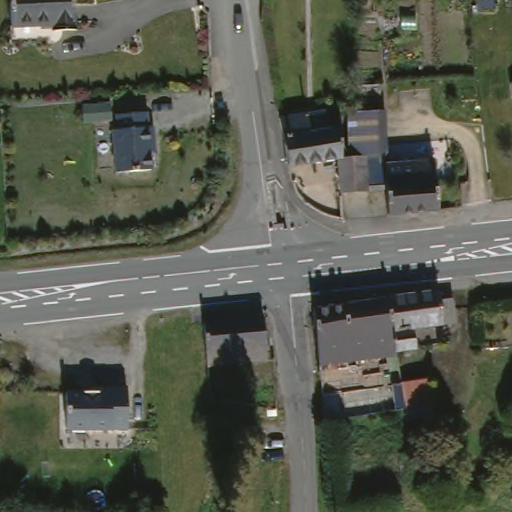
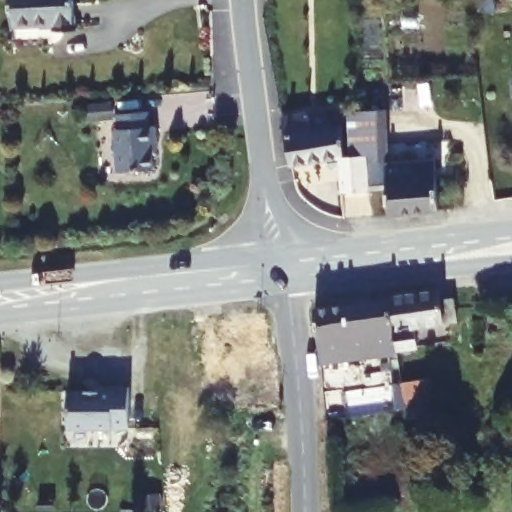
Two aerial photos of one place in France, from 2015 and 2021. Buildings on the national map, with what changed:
unchanged [(75,25),(56,26),(56,19),(12,21),(11,0),(74,0),(75,25)]
unchanged [(494,12),(479,12),(479,0),(495,0),(494,12)]
unchanged [(512,81),(512,99),(509,83),(512,81)]
unchanged [(491,124),(476,123),(477,95),(493,96),(491,124)]
unchanged [(308,114),(326,110),(327,117),(342,115),(344,158),(351,158),(367,157),(369,190),(342,192),(339,159),(290,167),(284,137),(281,118),(308,114)]
unchanged [(435,159),(439,211),(389,216),(388,189),(369,190),(367,157),(351,158),(349,112),(384,111),(386,157),(387,163),(435,159)]
unchanged [(116,128),(123,127),(124,115),(150,112),(151,126),(157,127),(159,166),(121,171),(116,128)]
unchanged [(445,296),(458,293),(462,318),(419,324),(422,345),(402,347),(396,292),(444,286),(445,296)]
unchanged [(319,303),(396,292),(402,347),(402,351),(325,361),(319,303)]
unchanged [(216,396),(213,362),(209,317),(269,311),(274,355),(223,361),(226,397),(216,396)]
unchanged [(433,416),(408,420),(406,409),(402,383),(428,380),(433,416)]
unchanged [(74,384),(130,385),(131,427),(73,430),(74,384)]

